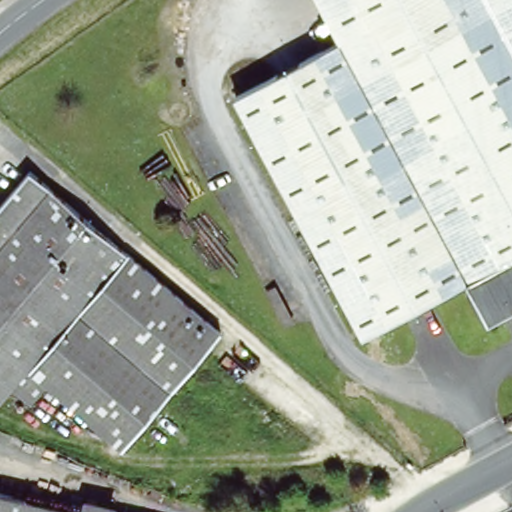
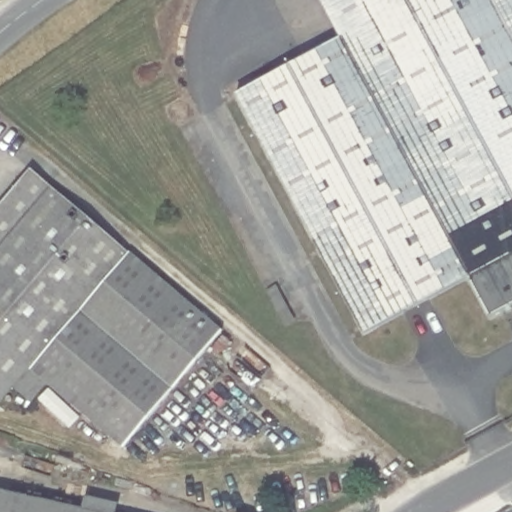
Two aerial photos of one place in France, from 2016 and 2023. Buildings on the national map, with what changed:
unchanged [(473,279),(368,337),(238,99),(339,45),(364,32),(347,0),(512,0),(512,311),(495,320),(473,279)]
unchanged [(339,45),(314,0),(347,0),(364,32),(339,45)]
unchanged [(226,329),(129,444),(51,379),(34,399),(15,383),(0,401),(0,214),(36,171),(226,329)]
unchanged [(81,512),(0,512),(0,493),(81,512)]

